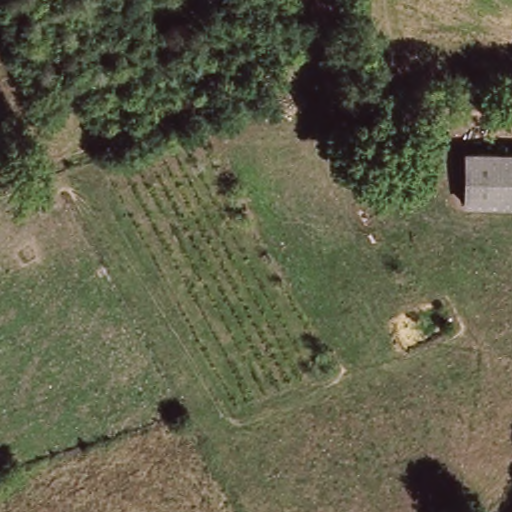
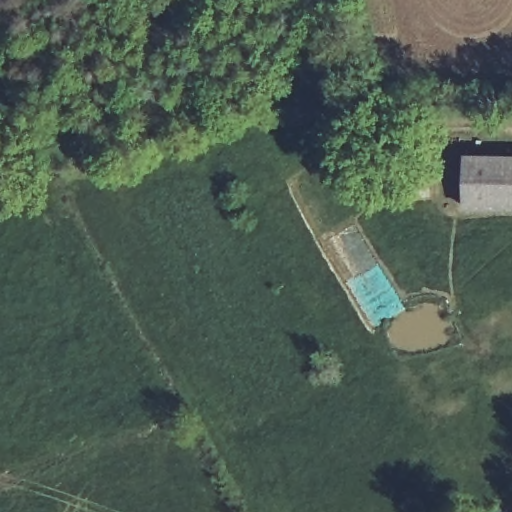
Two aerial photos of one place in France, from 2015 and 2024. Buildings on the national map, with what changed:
unchanged [(464,159),(512,158),(512,213),(464,214),(464,159)]

